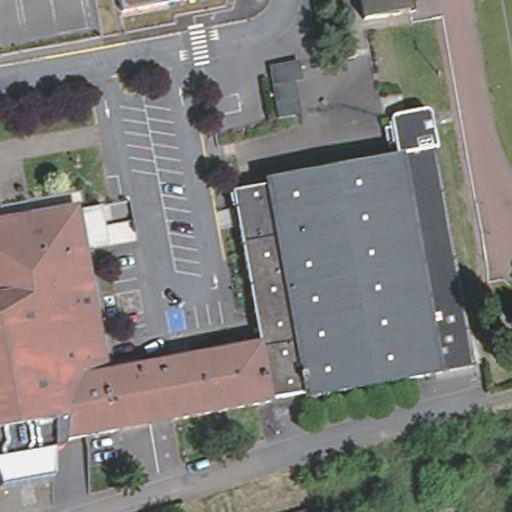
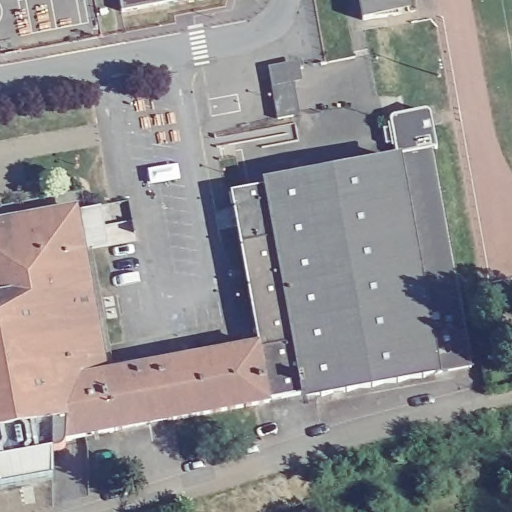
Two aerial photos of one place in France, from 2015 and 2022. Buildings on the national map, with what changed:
unchanged [(128,14),(126,0),(195,0),(128,14)]
unchanged [(401,20),(364,27),(359,0),(397,0),(401,20)]
unchanged [(270,70),(286,67),(287,70),(295,114),(279,117),(270,73),(270,70)]
unchanged [(394,135),(392,124),(428,117),(435,157),(430,158),(399,164),(397,150),(388,152),(385,136),(394,135)]
unchanged [(234,199),(268,192),(267,190),(274,190),(283,185),(296,185),(306,180),(322,181),(334,175),(347,176),(359,170),(372,171),(382,166),(395,166),(400,166),(399,164),(430,158),(471,375),(452,379),(442,381),(425,387),(412,386),(403,391),(390,390),(375,397),(362,395),(352,400),(337,400),(324,405),(315,406),(315,405),(312,405),(312,408),(307,408),(305,405),(270,412),(259,355),(234,199)]
unchanged [(105,382),(157,373),(157,368),(246,352),(247,357),(259,355),(270,412),(70,450),(65,456),(53,459),(0,469),(0,231),(75,217),(105,382)]
unchanged [(21,491),(0,495),(0,494),(0,469),(53,459),(53,485),(32,490),(35,495),(22,497),(21,491)]
unchanged [(340,512),(309,512),(339,504),(340,512)]

